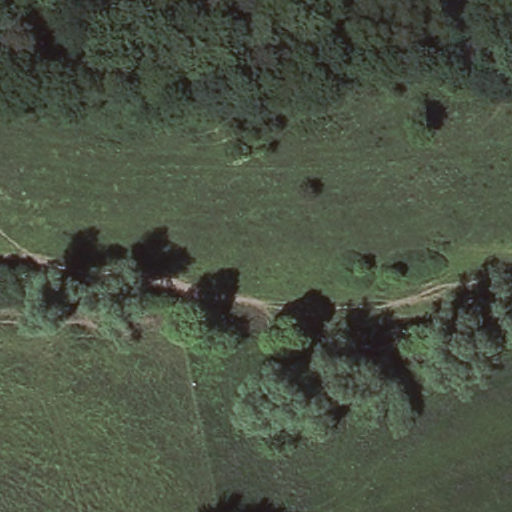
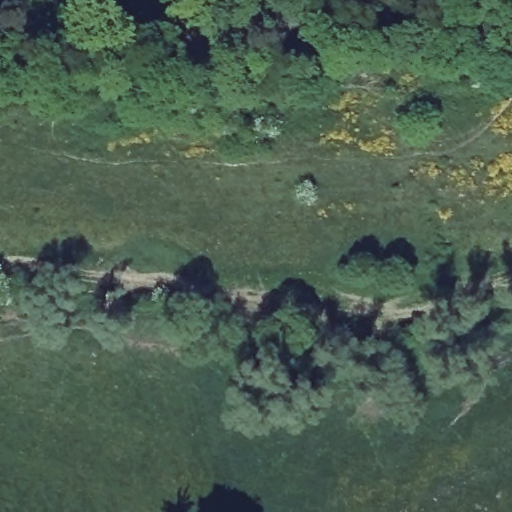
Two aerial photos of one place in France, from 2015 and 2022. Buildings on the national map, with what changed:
[]

